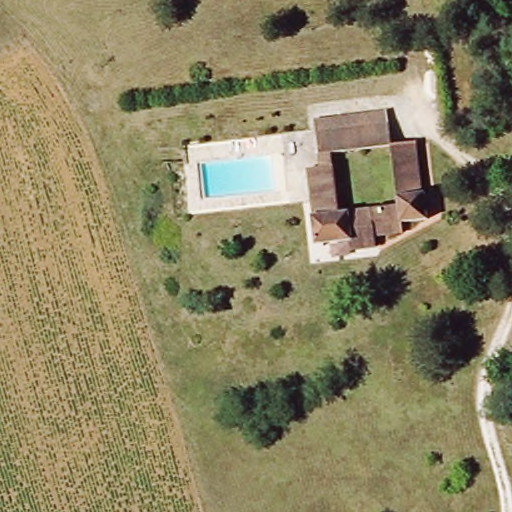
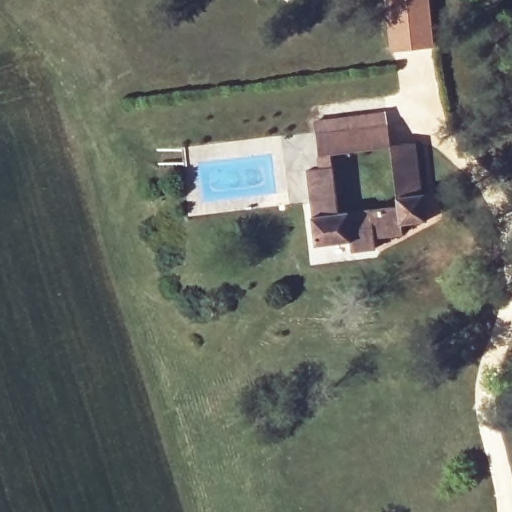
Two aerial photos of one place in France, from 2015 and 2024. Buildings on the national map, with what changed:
new [(389,52),(383,0),(429,0),(434,47),(389,52)]
unchanged [(351,246),(315,250),(313,219),(307,174),(320,172),(319,157),(316,136),(314,124),(385,117),(387,127),(390,150),(414,146),(423,198),(427,226),(402,228),(402,239),(375,242),(377,253),(353,256),(351,246)]

